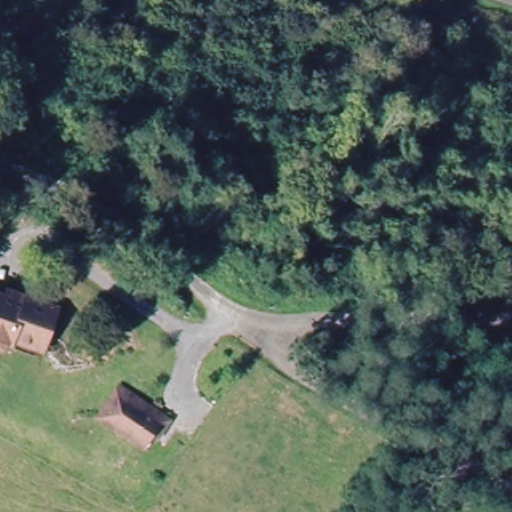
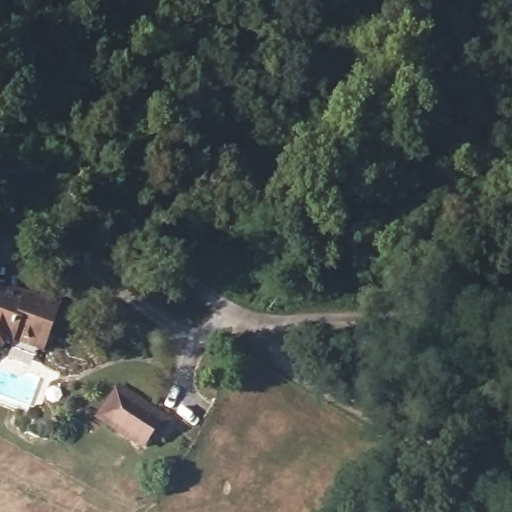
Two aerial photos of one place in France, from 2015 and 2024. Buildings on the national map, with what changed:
unchanged [(21,334),(17,332),(12,345),(8,343),(5,348),(0,351),(0,291),(0,290),(30,303),(32,298),(43,303),(59,311),(44,345),(21,334)]
unchanged [(165,425),(151,443),(145,437),(135,449),(93,415),(118,385),(159,420),(165,424),(165,425)]

